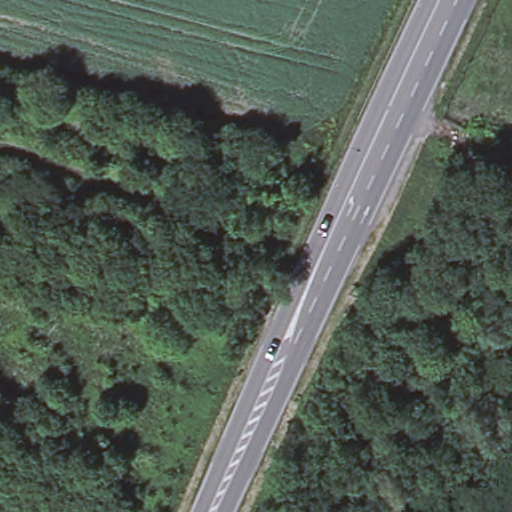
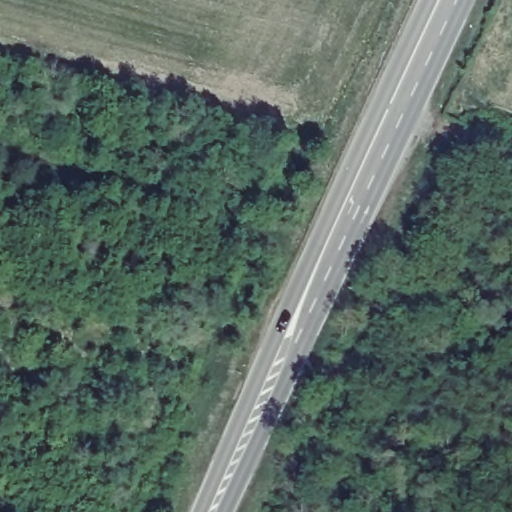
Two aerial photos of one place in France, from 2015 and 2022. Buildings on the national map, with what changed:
unchanged [(477,149),(465,144),(469,135),(481,140),(477,149)]

